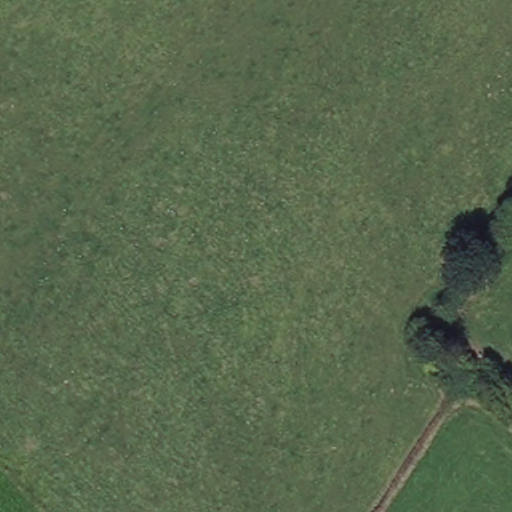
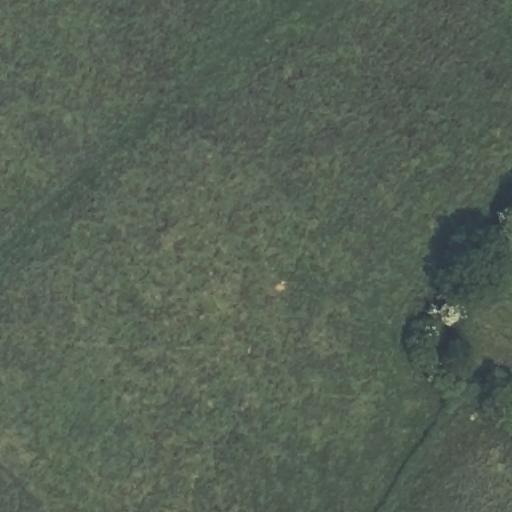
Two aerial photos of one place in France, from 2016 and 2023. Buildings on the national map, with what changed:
[]

